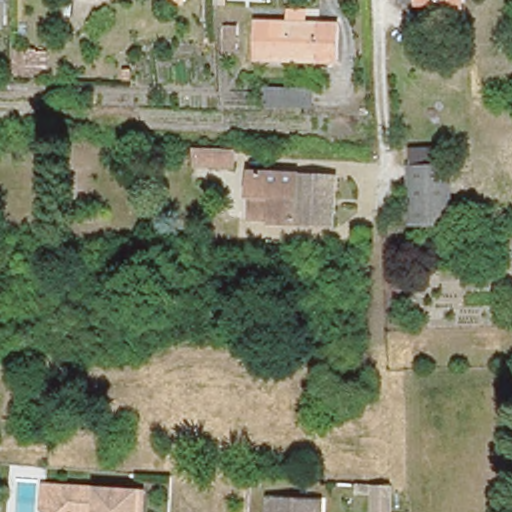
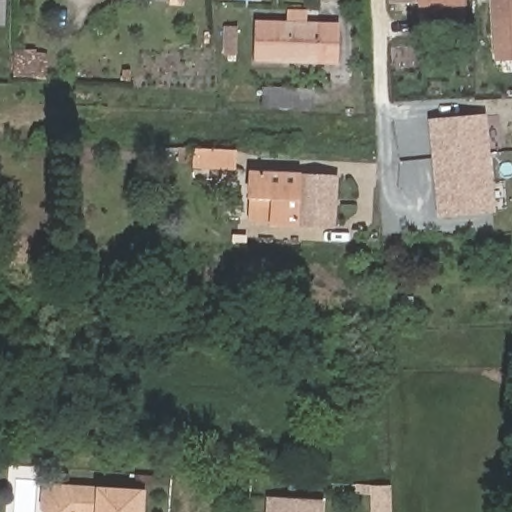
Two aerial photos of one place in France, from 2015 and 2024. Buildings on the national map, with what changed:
unchanged [(420,16),(418,2),(400,2),(400,0),(462,0),(463,15),(420,16)]
new [(493,0),(512,0),(512,61),(496,61),(493,0)]
unchanged [(336,63),(252,60),(255,18),(286,20),(287,10),(304,11),(303,21),(338,22),(336,63)]
unchanged [(236,54),(224,53),(225,25),(237,26),(236,54)]
unchanged [(40,75),(16,75),(16,54),(40,54),(40,75)]
unchanged [(269,92),(318,94),(317,100),(317,112),(268,110),(269,98),(269,92)]
new [(428,119),(487,113),(496,213),(437,218),(428,119)]
unchanged [(236,168),(194,166),(195,146),(238,148),(236,168)]
demolished [(450,209),(410,210),(407,149),(448,148),(450,209)]
unchanged [(252,200),(253,172),(275,173),(340,178),(337,224),(271,220),(251,219),(252,200)]
unchanged [(413,305),(402,305),(402,296),(413,295),(413,305)]
unchanged [(144,512),(52,512),(56,493),(145,497),(144,512)]
unchanged [(322,509),(322,512),(269,512),(270,507),(322,509)]

